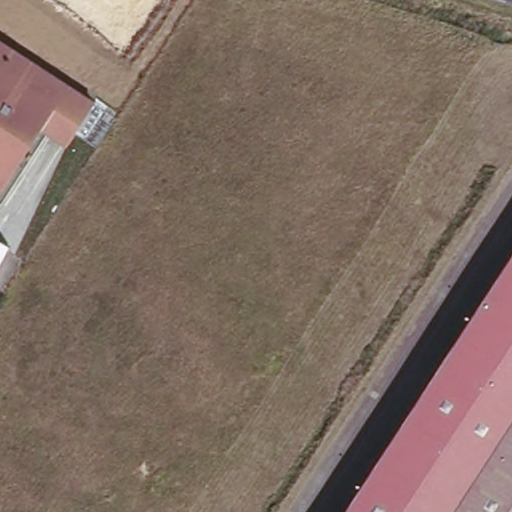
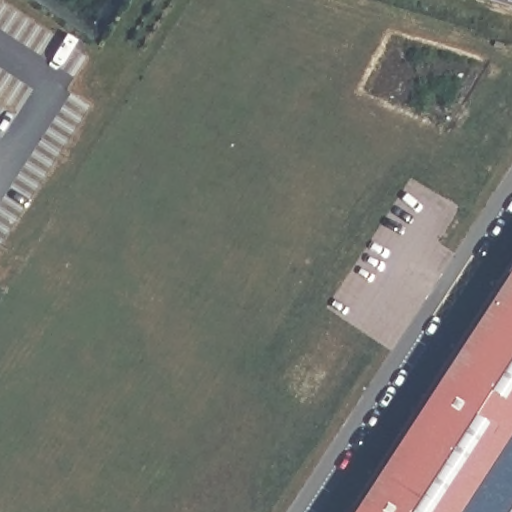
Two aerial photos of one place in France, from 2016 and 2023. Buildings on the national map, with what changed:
demolished [(70,145),(44,131),(0,191),(0,34),(97,96),(70,145)]
unchanged [(352,512),(512,258),(512,512),(352,512)]

